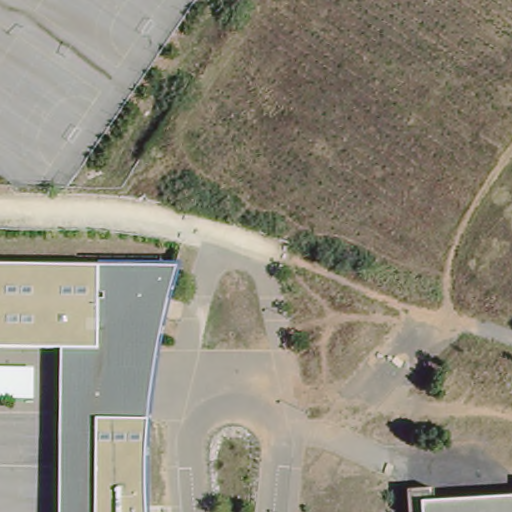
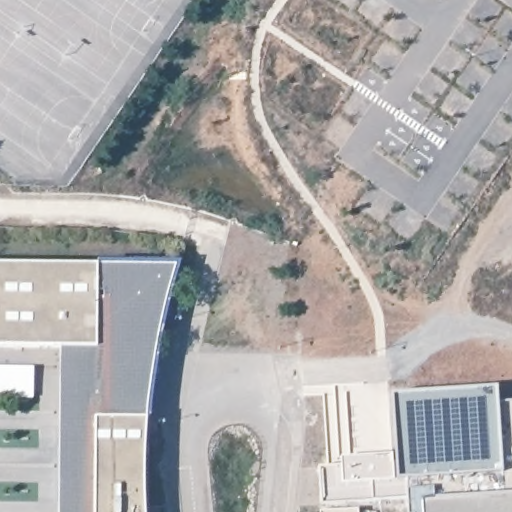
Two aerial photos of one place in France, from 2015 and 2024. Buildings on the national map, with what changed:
unchanged [(0,347),(0,259),(179,260),(168,304),(154,392),(150,461),(150,512),(57,512),(60,347),(0,347)]
new [(0,367),(36,369),(33,398),(0,398),(0,367)]
new [(499,403),(512,402),(512,503),(439,507),(439,501),(412,503),(409,503),(409,500),(322,506),(319,467),(342,465),(342,458),(396,455),(392,393),(498,387),(499,403)]
unchanged [(439,501),(439,507),(512,503),(512,512),(412,512),(412,503),(439,501)]
new [(359,509),(359,512),(321,512),(321,511),(359,509)]

